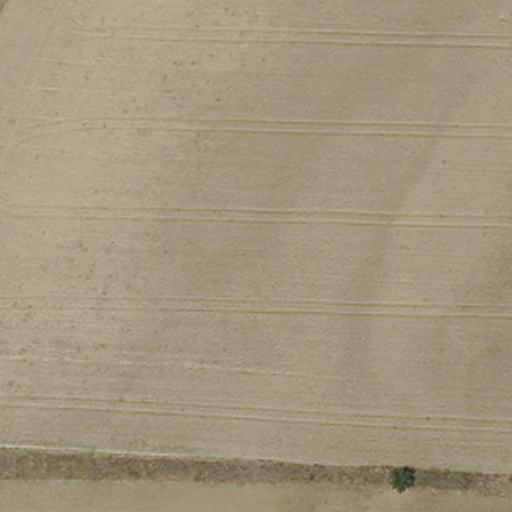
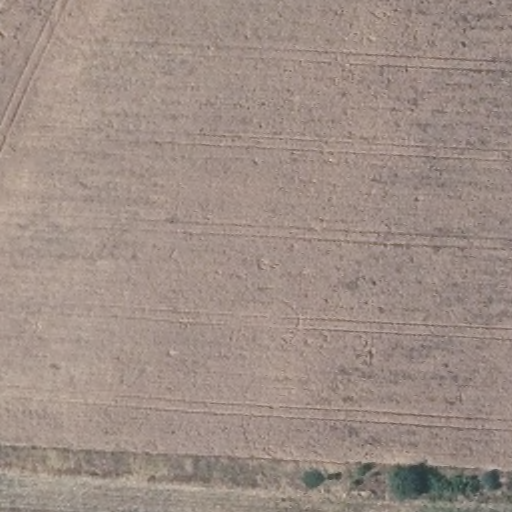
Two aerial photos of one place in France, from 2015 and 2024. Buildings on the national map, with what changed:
[]

